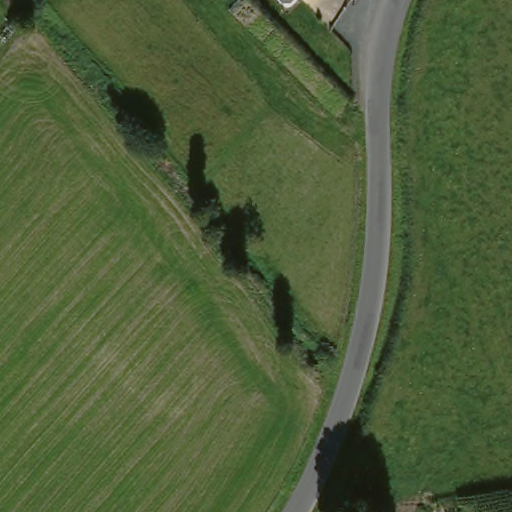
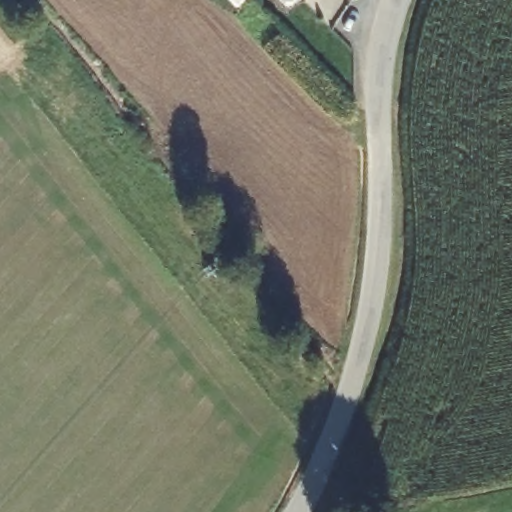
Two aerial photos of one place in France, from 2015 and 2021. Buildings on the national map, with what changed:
[]

